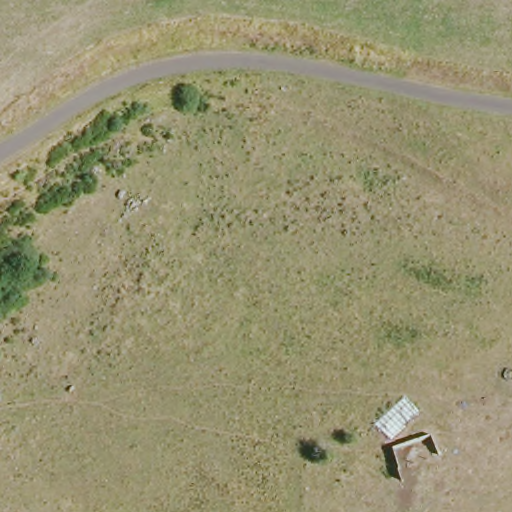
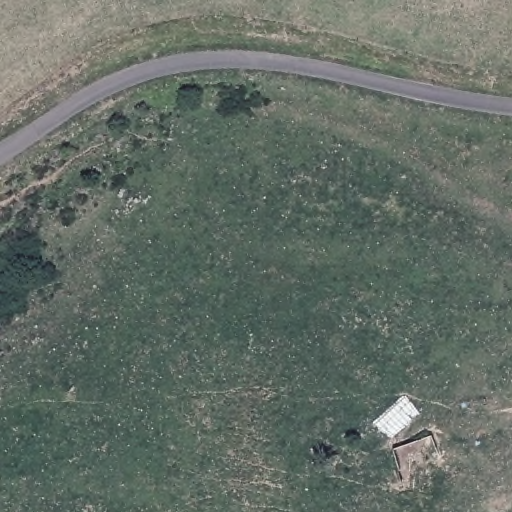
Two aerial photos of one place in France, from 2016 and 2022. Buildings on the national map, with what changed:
unchanged [(442,456),(403,470),(394,447),(433,433),(442,456)]

